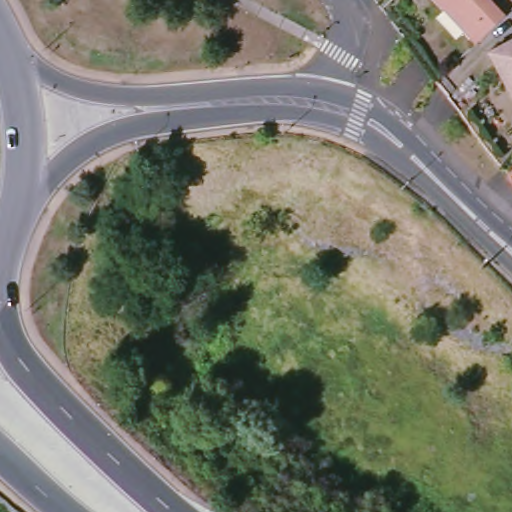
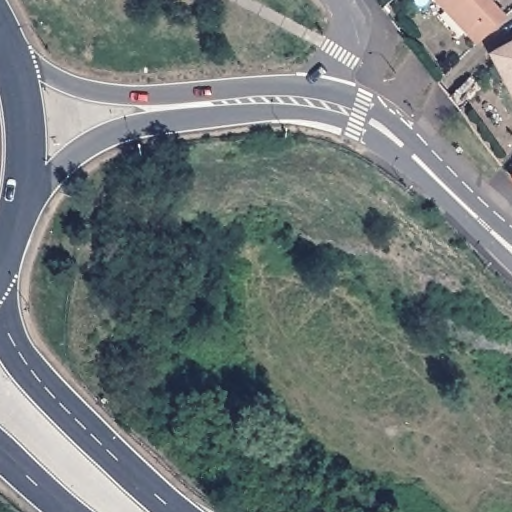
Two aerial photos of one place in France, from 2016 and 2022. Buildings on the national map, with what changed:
unchanged [(484,36),(479,40),(470,31),(475,27),(453,3),(449,7),(442,0),(492,0),(506,15),(484,36)]
unchanged [(512,40),(512,92),(490,52),(512,40)]
unchanged [(450,97),(472,74),(484,87),(461,111),(450,97)]
unchanged [(511,179),(512,177),(512,179),(511,179)]

